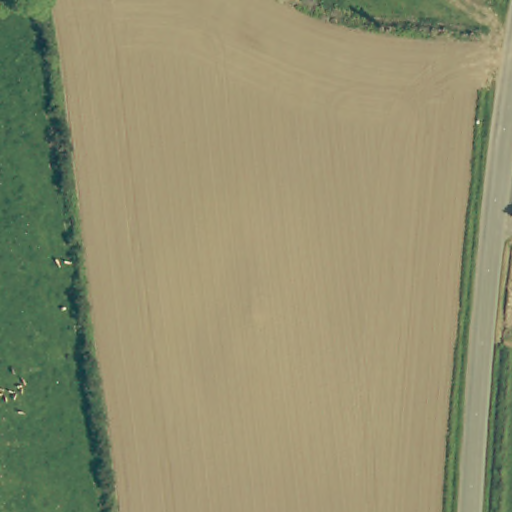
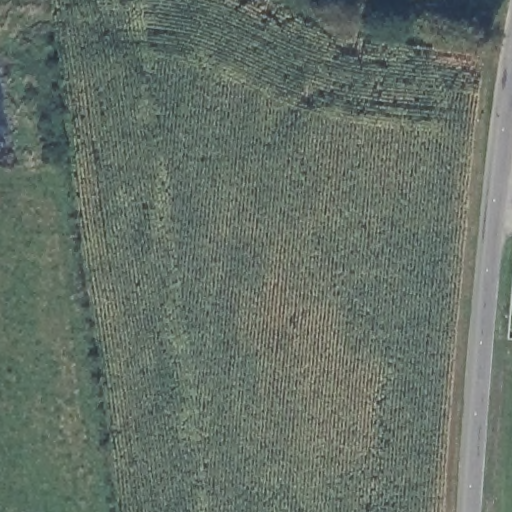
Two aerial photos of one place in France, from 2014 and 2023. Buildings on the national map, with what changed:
[]

